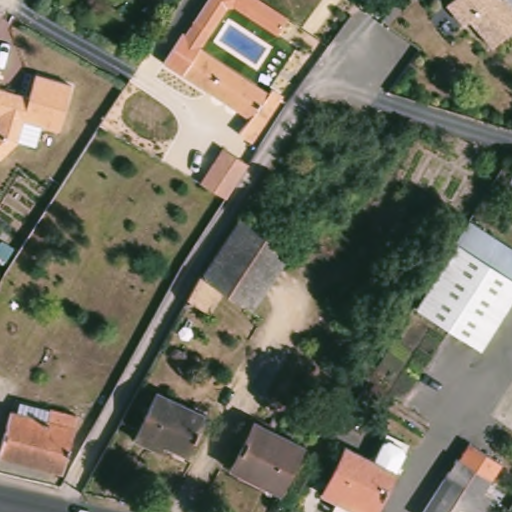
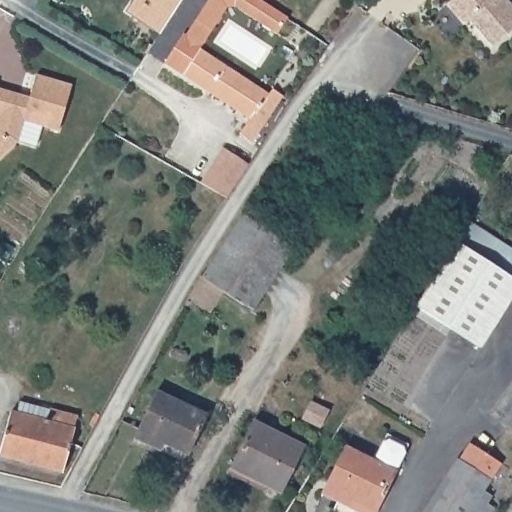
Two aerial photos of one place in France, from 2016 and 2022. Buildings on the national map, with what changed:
new [(131,0),(178,0),(159,30),(126,9),(131,0)]
unchanged [(183,39),(207,0),(260,0),(287,17),(276,34),(233,7),(224,10),(201,50),(183,39)]
unchanged [(512,4),(512,31),(498,44),(469,12),(464,17),(447,0),(509,0),(512,4)]
unchanged [(164,68),(183,39),(201,50),(198,54),(270,97),(273,92),(284,100),(253,146),(240,138),(250,123),(182,80),(164,68)]
unchanged [(33,92),(40,70),(75,81),(61,126),(27,116),(20,136),(2,153),(0,150),(0,126),(3,124),(5,109),(0,107),(0,82),(33,92)]
unchanged [(1,77),(0,82),(0,77),(1,77)]
unchanged [(206,177),(229,141),(254,158),(252,160),(232,194),(206,177)]
unchanged [(195,280),(241,211),(249,216),(244,224),(289,254),(251,310),(247,315),(230,303),(195,280)]
unchanged [(512,278),(512,297),(480,346),(415,305),(456,241),(512,278)]
unchanged [(151,452),(134,444),(156,396),(205,420),(186,460),(163,448),(159,456),(151,452)]
unchanged [(6,415),(11,417),(15,406),(72,420),(56,478),(0,464),(0,441),(6,415)]
unchanged [(249,426),(299,450),(276,497),(226,474),(249,426)]
unchanged [(374,459),(380,447),(401,457),(375,512),(334,512),(333,511),(337,502),(321,493),(345,445),(374,459)]
unchanged [(456,461),(466,445),(496,463),(479,490),(487,495),(482,503),(490,508),(488,512),(419,512),(452,458),(456,461)]

